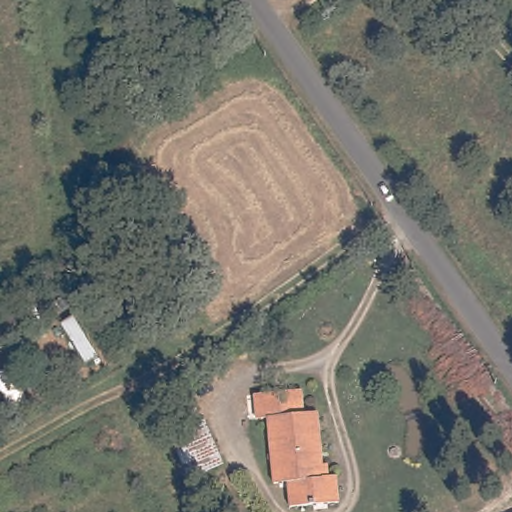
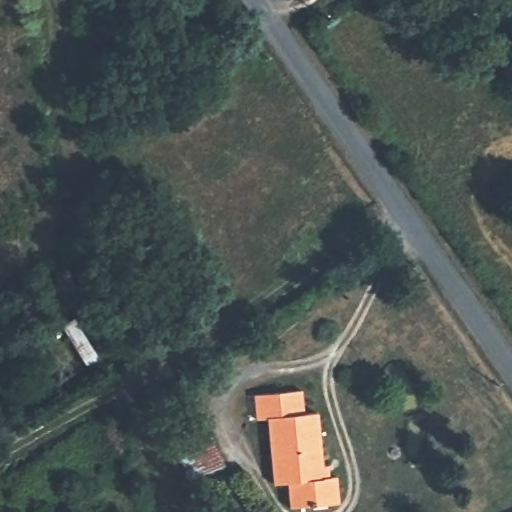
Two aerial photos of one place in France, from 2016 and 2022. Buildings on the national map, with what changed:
unchanged [(302,388),(305,412),(319,410),(326,475),(337,475),(340,501),(292,506),(290,482),(276,483),(269,419),(257,419),(255,392),(302,388)]
unchanged [(204,424),(205,424),(219,461),(187,472),(174,436),(185,431),(204,424)]

